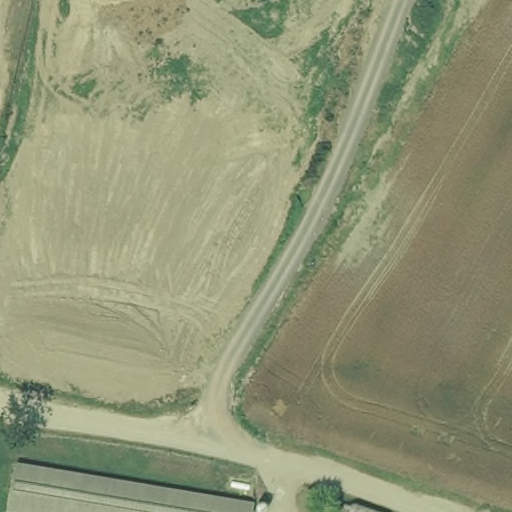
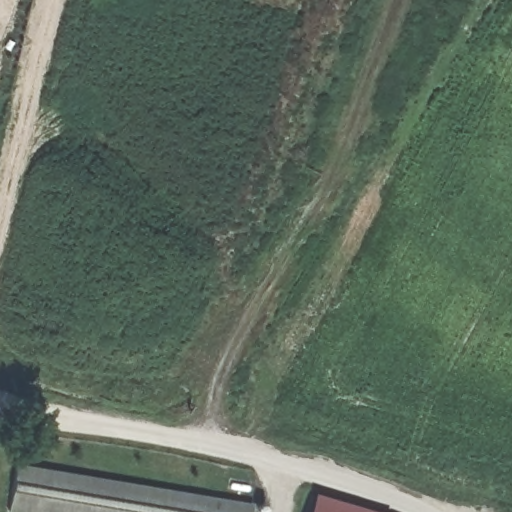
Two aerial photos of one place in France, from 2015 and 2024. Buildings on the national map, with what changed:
unchanged [(253,506),(251,512),(22,512),(8,510),(15,465),(253,506)]
new [(371,512),(309,512),(315,493),(371,512)]

